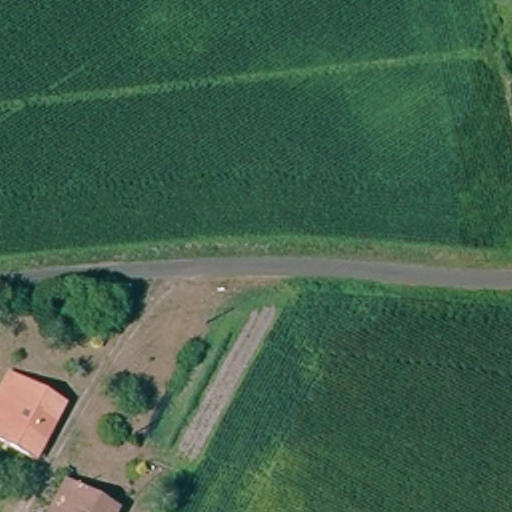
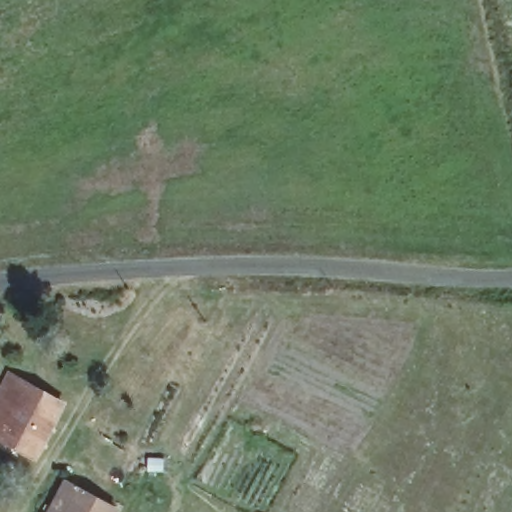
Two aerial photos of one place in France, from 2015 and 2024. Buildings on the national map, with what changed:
unchanged [(0,443),(0,384),(5,375),(7,376),(58,402),(31,459),(0,443)]
unchanged [(67,486),(112,512),(53,512),(67,486)]

